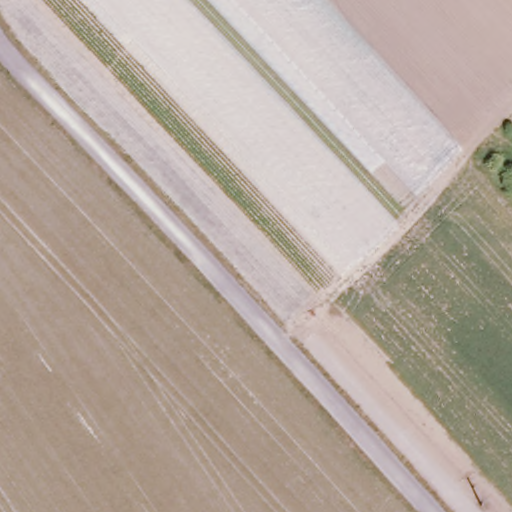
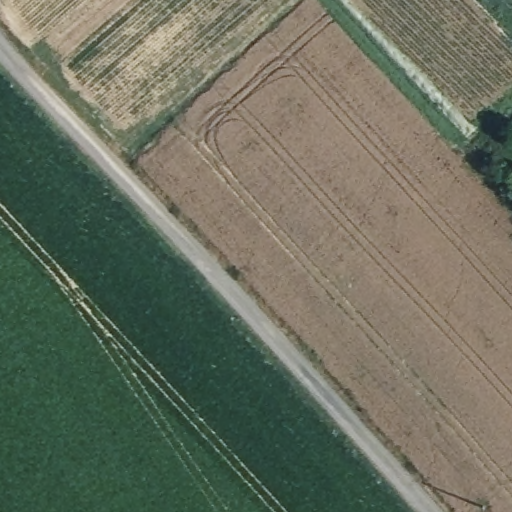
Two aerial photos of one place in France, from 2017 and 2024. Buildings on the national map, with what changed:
[]

